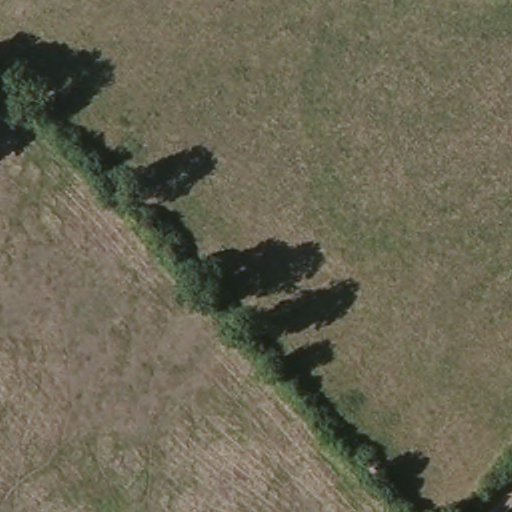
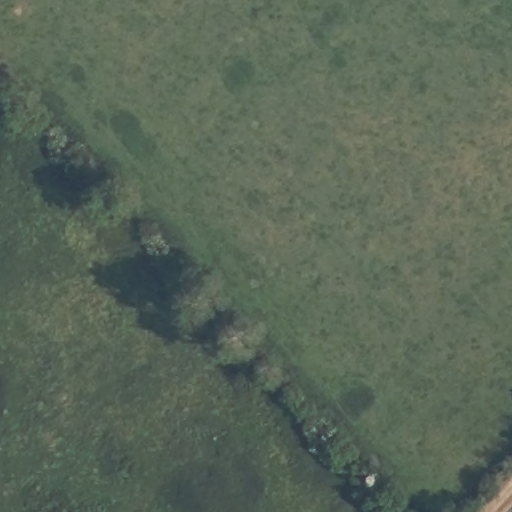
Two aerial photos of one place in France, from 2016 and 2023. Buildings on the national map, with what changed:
[]

